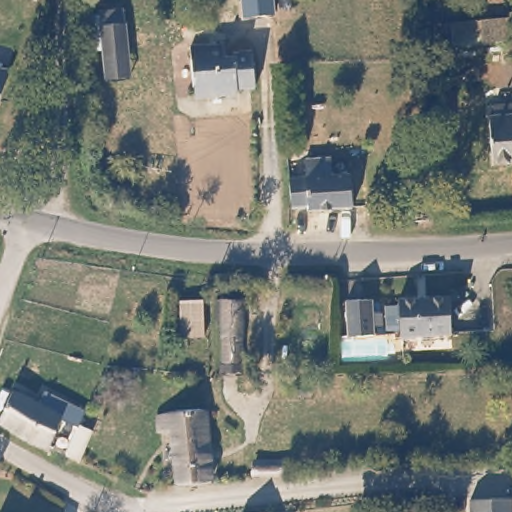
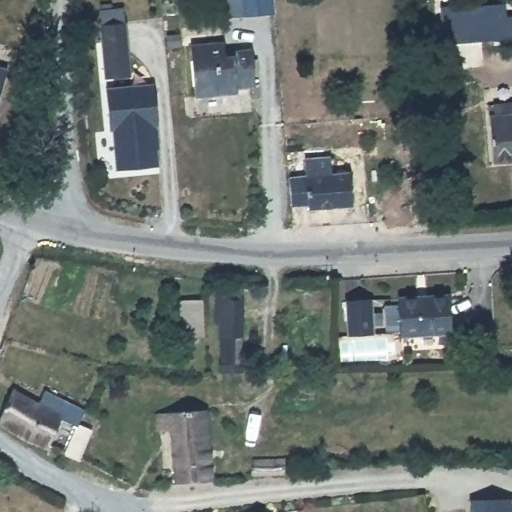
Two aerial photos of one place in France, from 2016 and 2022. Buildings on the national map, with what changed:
new [(272,17),(257,18),(242,19),(241,0),(271,0),(272,17)]
unchanged [(479,20),(512,16),(512,40),(482,43),(479,20)]
unchanged [(129,19),(133,72),(109,74),(104,21),(129,19)]
unchanged [(223,59),(231,58),(231,53),(250,52),(252,88),(235,90),(235,95),(193,98),(189,46),(222,44),(223,59)]
unchanged [(7,68),(0,93),(0,65),(7,68)]
new [(111,130),(109,130),(104,89),(153,83),(158,125),(156,126),(158,146),(155,146),(157,165),(115,170),(111,130)]
unchanged [(488,117),(493,116),(491,106),(512,104),(512,163),(493,165),(488,117)]
unchanged [(331,177),(348,176),(350,207),(307,209),(306,203),(288,204),(285,180),(305,179),(304,161),(330,159),(331,177)]
unchanged [(371,329),(348,330),(347,295),(370,294),(371,329)]
unchanged [(446,334),(397,336),(395,296),(444,294),(446,334)]
unchanged [(174,299),(202,300),(204,336),(173,339),(174,299)]
unchanged [(83,411),(78,424),(64,418),(50,449),(47,448),(25,439),(0,422),(0,420),(11,396),(36,406),(41,394),(83,411)]
unchanged [(205,451),(208,483),(175,485),(171,432),(157,433),(156,414),(203,411),(205,451)]
unchanged [(88,435),(75,461),(64,456),(75,430),(88,435)]
unchanged [(251,478),(249,457),(283,456),(284,475),(251,478)]
unchanged [(512,490),(512,512),(473,512),(472,492),(512,490)]
unchanged [(245,512),(244,506),(276,503),(277,512),(245,512)]

